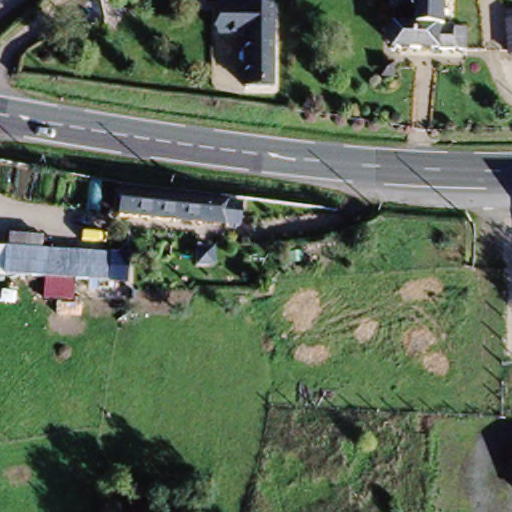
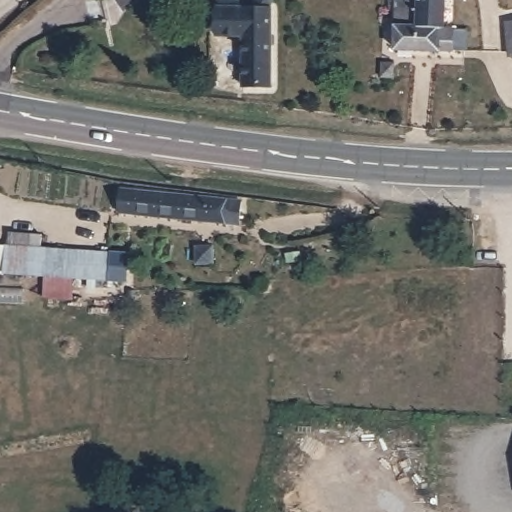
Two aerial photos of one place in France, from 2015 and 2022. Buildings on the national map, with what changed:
unchanged [(455,29),(465,29),(465,44),(465,51),(440,50),(395,50),(396,26),(396,11),(388,11),(389,0),(446,0),(445,27),(440,28),(440,29),(455,29)]
unchanged [(272,7),(271,35),(243,34),(218,33),(218,5),(272,7)]
unchanged [(270,86),(242,85),(243,34),(271,35),(270,86)]
unchanged [(241,201),(240,225),(120,213),(121,188),(241,201)]
unchanged [(40,234),(40,245),(7,243),(8,232),(40,234)]
unchanged [(107,281),(2,274),(0,274),(0,245),(5,245),(108,252),(107,281)]

